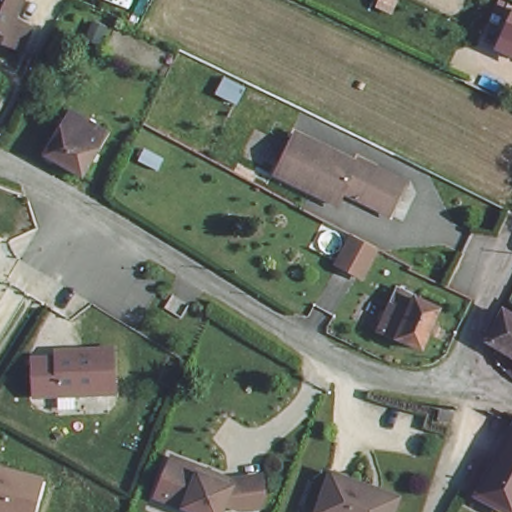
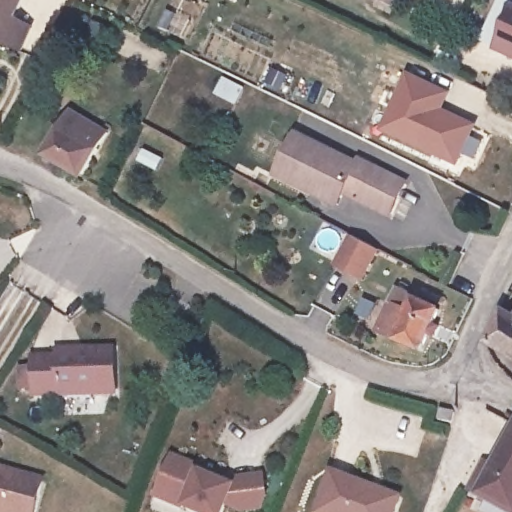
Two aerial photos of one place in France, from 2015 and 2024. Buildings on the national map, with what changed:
unchanged [(16,50),(4,46),(2,51),(0,50),(0,0),(23,0),(16,14),(30,21),(16,50)]
new [(408,71),(450,90),(444,109),(477,123),(467,155),(464,154),(457,166),(380,135),(408,71)]
unchanged [(104,131),(80,179),(44,160),(70,113),(104,131)]
unchanged [(311,187),(276,169),(295,128),(355,159),(357,156),(375,164),(360,198),(342,189),(340,193),(337,199),(311,187)]
unchanged [(405,179),(390,211),(360,198),(375,164),(405,179)]
unchanged [(364,280),(339,267),(353,235),(379,249),(364,280)]
unchanged [(381,328),(400,287),(421,297),(402,337),(381,328)]
unchanged [(421,297),(444,308),(425,347),(402,337),(421,297)]
unchanged [(497,348),(510,313),(512,313),(512,357),(497,348)]
unchanged [(117,393),(38,396),(35,358),(60,356),(60,350),(113,344),(117,393)]
unchanged [(463,426),(452,423),(435,417),(437,403),(455,408),(469,412),(463,426)]
unchanged [(477,494),(512,423),(512,509),(477,494)]
unchanged [(159,488),(171,457),(199,468),(228,479),(262,476),(265,497),(260,507),(242,509),(226,504),(222,512),(195,512),(184,508),(155,497),(159,488)]
unchanged [(34,512),(0,512),(0,462),(46,472),(34,512)]
unchanged [(400,497),(393,512),(316,512),(332,472),(400,497)]

